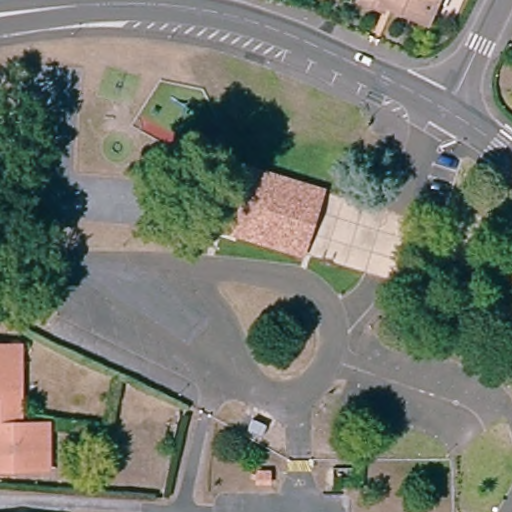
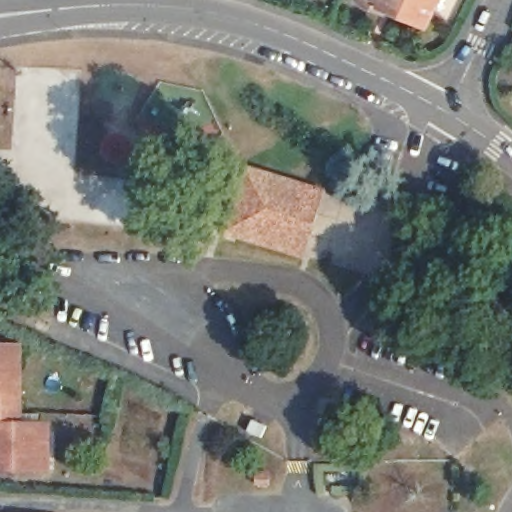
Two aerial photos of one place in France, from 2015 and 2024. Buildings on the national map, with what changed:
unchanged [(361,0),(434,0),(427,17),(388,1),(383,12),(360,2),(361,0)]
unchanged [(304,189),(282,251),(224,232),(237,196),(247,170),(304,189)]
unchanged [(321,195),(301,256),(299,257),(282,251),(304,189),(321,195)]
unchanged [(0,471),(0,348),(9,348),(16,348),(18,382),(18,400),(19,426),(33,426),(42,426),(43,472),(33,472),(0,471)]

